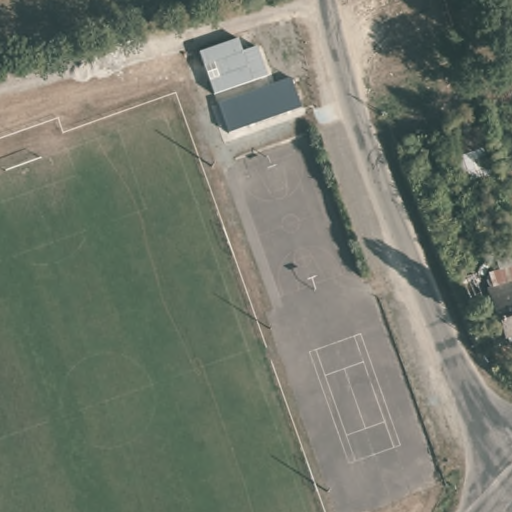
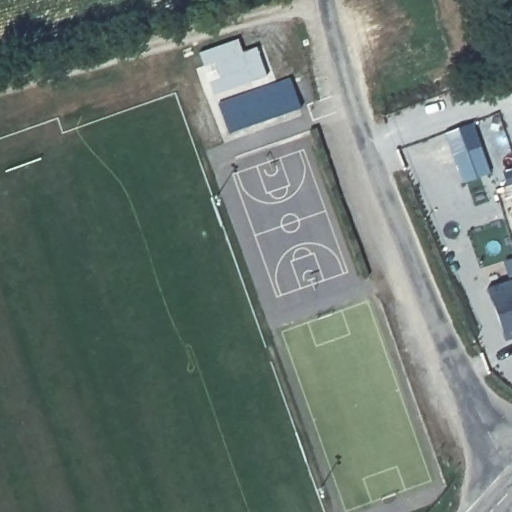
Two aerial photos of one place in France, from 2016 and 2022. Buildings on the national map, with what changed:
unchanged [(214,103),(211,95),(200,60),(239,47),(243,60),(257,56),(265,78),(267,85),(214,103)]
unchanged [(230,108),(292,84),(299,101),(235,125),(230,108)]
new [(492,171),(461,184),(441,134),(473,122),(492,171)]
unchanged [(506,334),(488,283),(512,275),(512,332),(506,334)]

